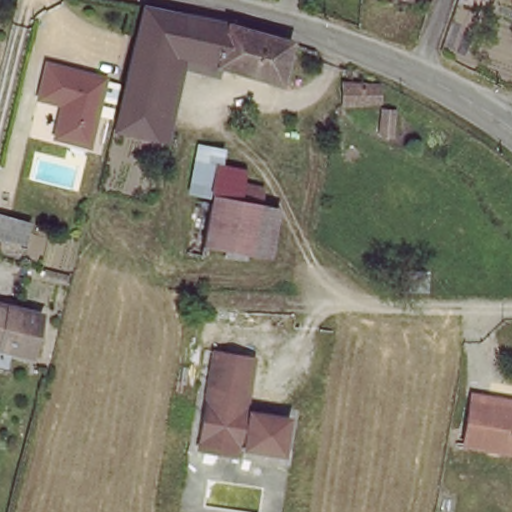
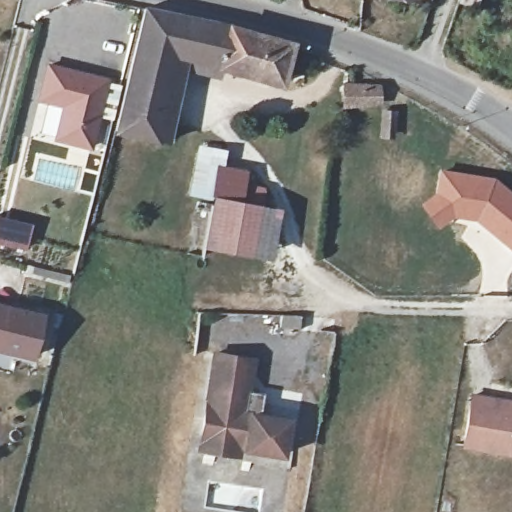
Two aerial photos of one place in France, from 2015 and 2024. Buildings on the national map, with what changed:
unchanged [(276,86),(189,69),(176,137),(119,127),(143,13),(284,46),(276,86)]
unchanged [(60,138),(67,107),(43,102),(50,65),(109,75),(119,77),(113,106),(103,104),(94,145),(60,138)]
unchanged [(381,86),(377,106),(344,100),(348,80),(381,86)]
unchanged [(378,137),(384,108),(407,114),(401,143),(378,137)]
unchanged [(228,147),(226,162),(219,161),(211,199),(188,195),(197,141),(228,147)]
unchanged [(219,161),(226,162),(250,166),(247,182),(268,187),(263,210),(211,199),(219,161)]
new [(438,168),(494,177),(512,191),(512,252),(473,222),(454,220),(437,231),(418,204),(434,191),(438,168)]
unchanged [(263,210),(255,262),(201,250),(211,199),(263,210)]
unchanged [(29,224),(25,242),(0,236),(0,218),(29,224)]
unchanged [(47,309),(38,354),(5,348),(0,346),(0,299),(47,309)]
unchanged [(202,430),(215,351),(256,358),(247,412),(290,420),(282,454),(233,443),(231,457),(199,450),(202,430)]
unchanged [(489,403),(512,406),(512,454),(464,446),(475,396),(489,398),(489,403)]

